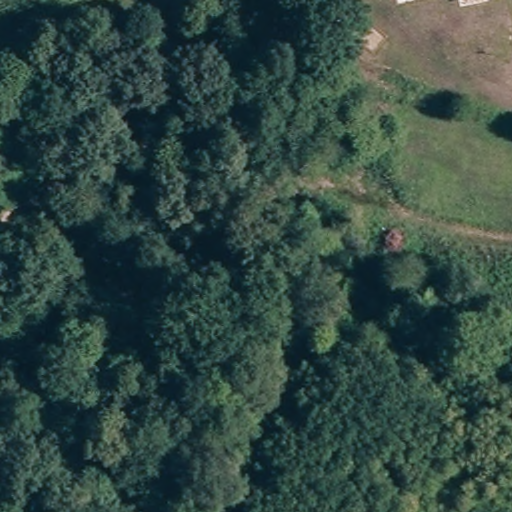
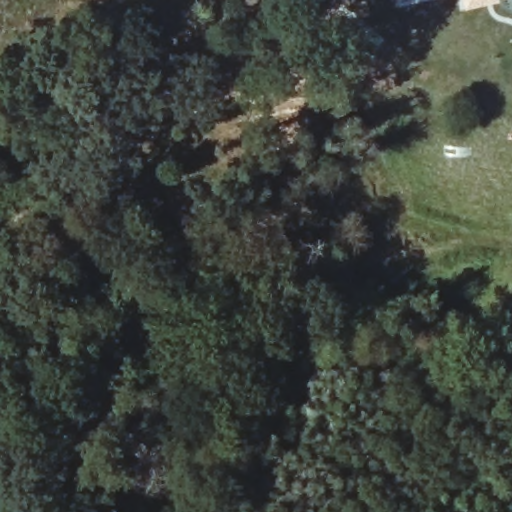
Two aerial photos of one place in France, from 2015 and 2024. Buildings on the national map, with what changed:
unchanged [(467,7),(465,0),(497,0),(467,7)]

